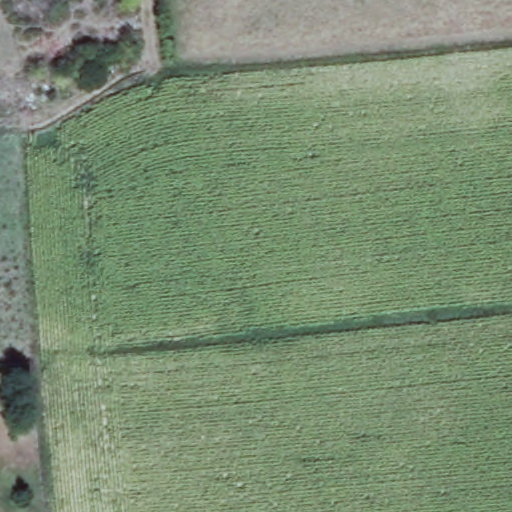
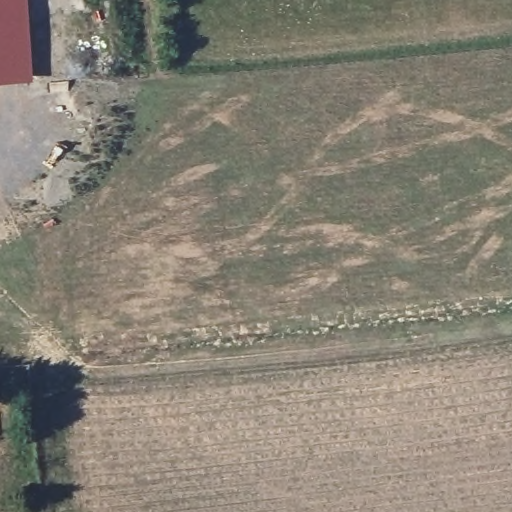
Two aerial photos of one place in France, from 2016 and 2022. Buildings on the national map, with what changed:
new [(32,78),(0,80),(0,0),(27,0),(32,78)]

